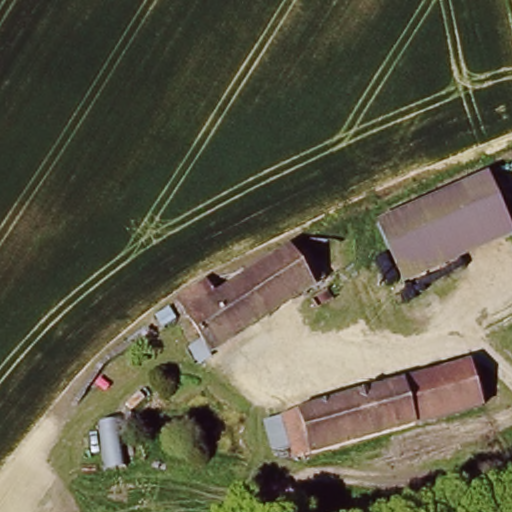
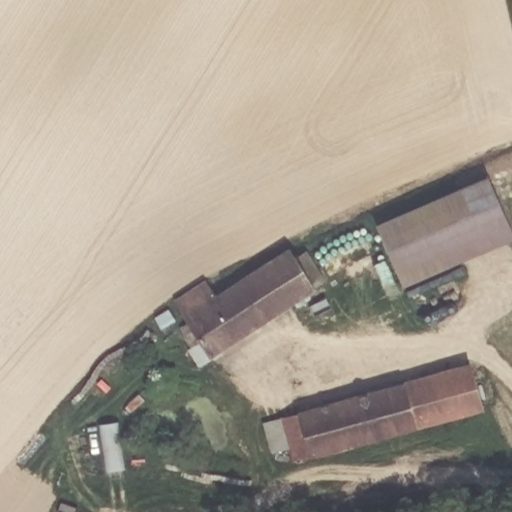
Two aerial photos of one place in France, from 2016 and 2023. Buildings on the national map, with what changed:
unchanged [(501,242),(404,287),(379,225),(477,180),(501,242)]
unchanged [(184,331),(201,322),(187,302),(223,281),(231,292),(301,253),(310,267),(323,261),(344,291),(206,365),(193,345),(184,331)]
unchanged [(479,392),(483,407),(415,428),(311,459),(294,463),(288,447),(270,449),(263,422),(296,410),(469,360),(479,392)]

